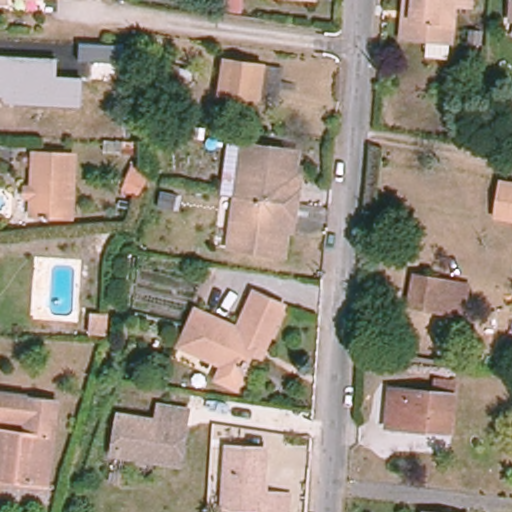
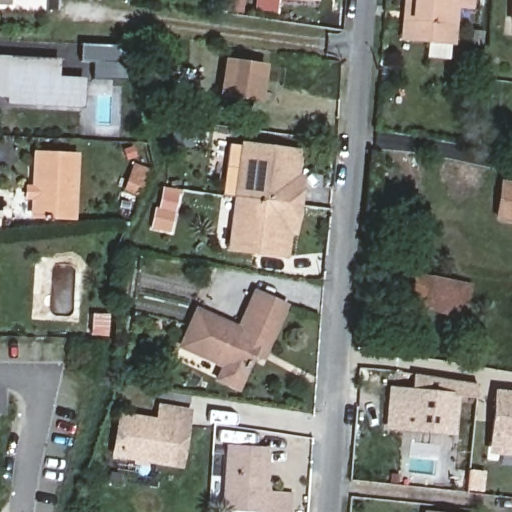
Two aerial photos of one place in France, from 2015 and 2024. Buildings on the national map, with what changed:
unchanged [(7,4),(0,4),(0,0),(7,0),(7,4)]
unchanged [(468,7),(453,6),(449,43),(406,39),(408,15),(401,14),(402,0),(469,0),(468,7)]
unchanged [(508,21),(509,0),(512,0),(512,21),(508,21)]
unchanged [(123,62),(79,62),(80,44),(123,45),(123,62)]
unchanged [(6,104),(6,98),(0,97),(0,55),(58,58),(57,77),(83,77),(83,107),(6,104)]
unchanged [(265,67),(260,100),(223,94),(228,61),(265,67)]
unchanged [(162,63),(182,66),(180,82),(160,79),(162,63)]
unchanged [(298,155),(295,177),(290,179),(289,189),(299,190),(297,205),(240,197),(247,148),(298,155)]
unchanged [(74,218),(33,216),(36,154),(77,156),(74,218)]
unchanged [(512,184),(512,219),(499,217),(504,183),(512,184)]
unchanged [(297,205),(295,220),(285,218),(284,228),(288,231),(284,253),(234,246),(240,197),(297,205)]
unchanged [(472,286),(466,315),(411,304),(417,276),(472,286)]
unchanged [(282,307),(265,343),(253,337),(246,352),(249,353),(234,389),(214,380),(220,366),(177,347),(194,311),(235,330),(251,293),(282,307)]
unchanged [(92,334),(94,315),(109,317),(109,326),(108,336),(92,334)]
unchanged [(434,399),(435,387),(453,389),(449,429),(419,427),(419,436),(384,432),(388,395),(434,399)]
demolished [(30,477),(30,472),(9,469),(9,474),(0,473),(0,428),(28,432),(30,417),(0,413),(0,393),(59,400),(49,479),(30,477)]
new [(494,443),(499,394),(512,395),(512,444),(494,443)]
unchanged [(184,406),(180,462),(113,457),(115,418),(154,420),(155,404),(184,406)]
unchanged [(284,502),(283,512),(251,512),(219,510),(224,449),(263,452),(259,500),(284,502)]

